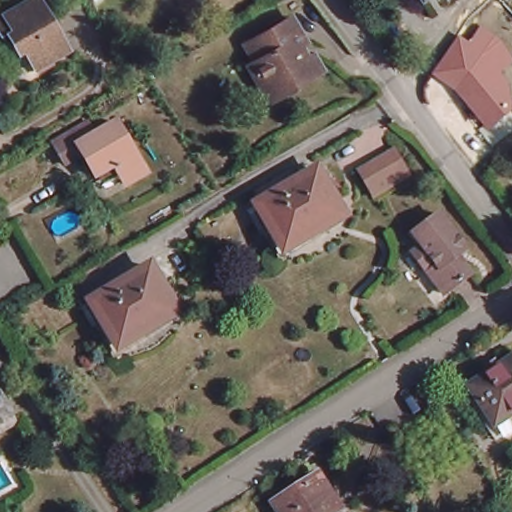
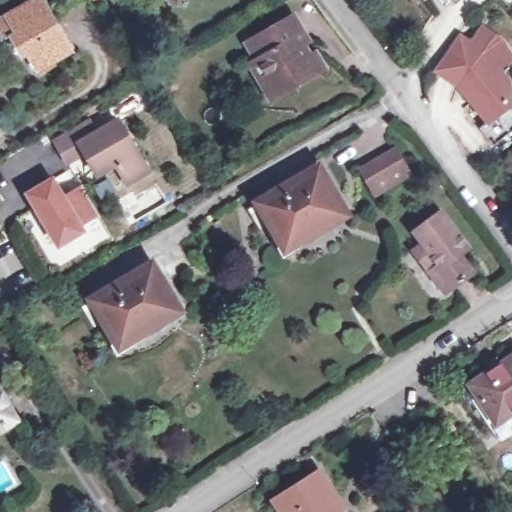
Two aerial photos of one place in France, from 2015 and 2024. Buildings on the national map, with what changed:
unchanged [(15,33),(5,39),(0,30),(0,20),(35,0),(39,0),(69,52),(37,70),(15,33)]
unchanged [(261,59),(253,43),(298,18),(313,41),(304,46),(311,60),(321,55),(328,68),(318,73),(275,99),(265,81),(254,64),(261,59)]
unchanged [(456,89),(432,73),(458,35),(469,41),(479,26),(497,37),(512,57),(512,60),(502,71),(511,81),(512,100),(512,106),(486,126),(456,89)]
unchanged [(102,181),(89,158),(72,169),(56,144),(76,133),(86,147),(124,126),(152,177),(131,189),(121,170),(102,181)]
unchanged [(388,191),(377,198),(362,171),(396,150),(403,162),(408,170),(412,176),(388,191)]
unchanged [(276,233),(259,204),(319,168),(346,216),(294,246),(286,250),(276,233)]
new [(54,175),(64,193),(80,184),(100,217),(84,227),(87,232),(57,250),(23,193),(54,175)]
unchanged [(440,296),(411,254),(421,245),(411,232),(437,213),(457,238),(466,251),(455,258),(468,276),(440,296)]
unchanged [(109,331),(93,301),(152,266),(180,312),(128,343),(119,348),(109,331)]
unchanged [(472,400),(478,396),(471,386),(512,359),(512,423),(495,435),(472,400)]
unchanged [(17,421),(0,431),(0,392),(17,421)]
unchanged [(319,475),(339,508),(332,512),(282,512),(276,501),(319,475)]

